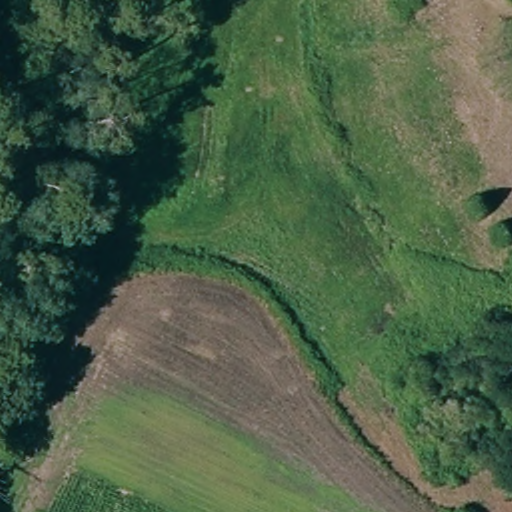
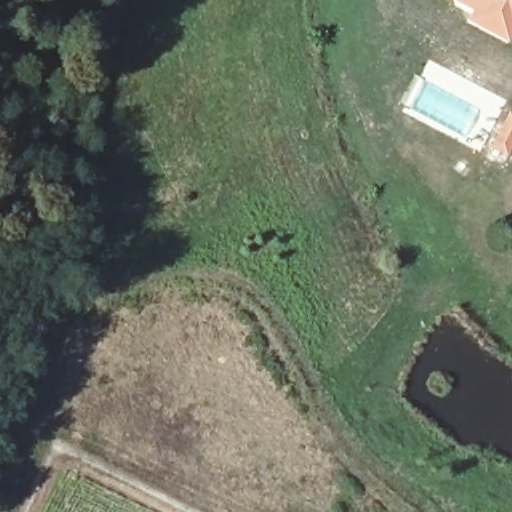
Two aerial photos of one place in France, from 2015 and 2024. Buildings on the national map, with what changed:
new [(467,19),(472,9),(455,0),(512,0),(512,35),(509,41),(467,19)]

